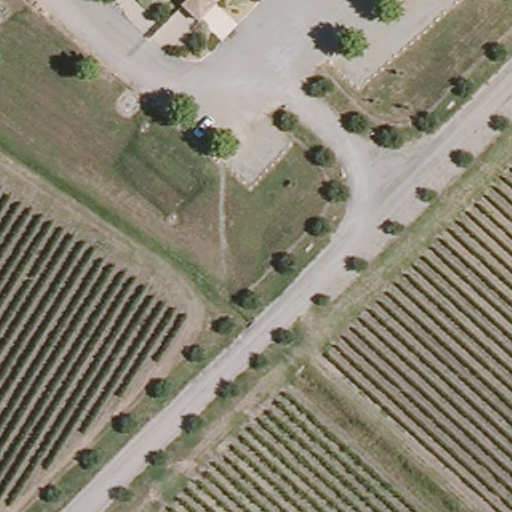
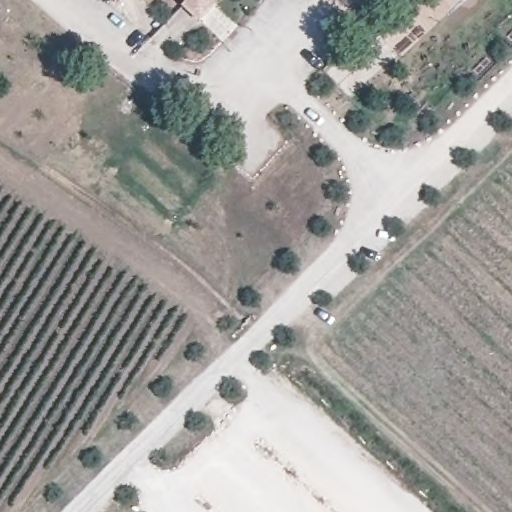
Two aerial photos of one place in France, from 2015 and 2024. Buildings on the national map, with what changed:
unchanged [(198,21),(180,4),(184,0),(214,0),(217,4),(198,21)]

